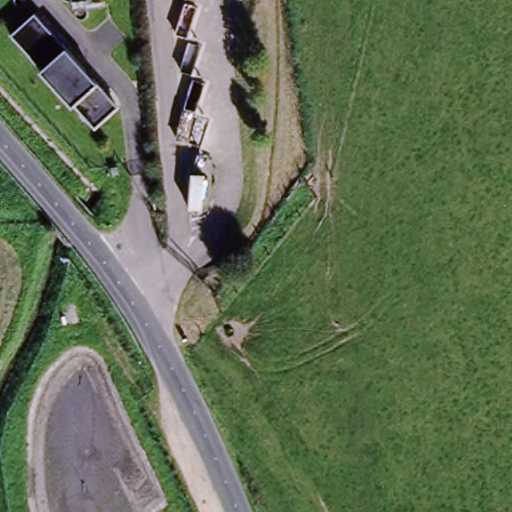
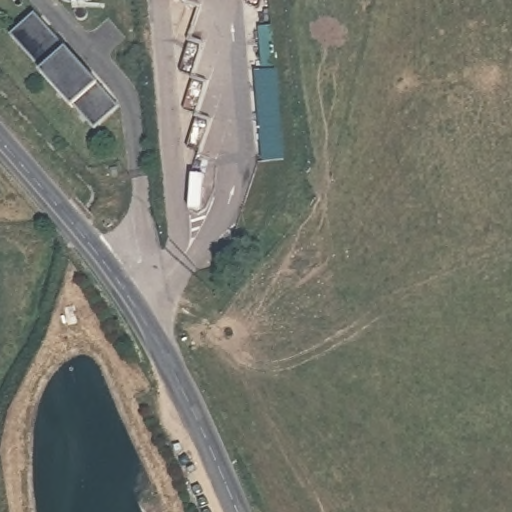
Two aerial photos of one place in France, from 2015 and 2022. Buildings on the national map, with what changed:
unchanged [(117,108),(93,128),(8,37),(33,13),(117,108)]
new [(273,70),(286,159),(266,161),(254,72),(273,70)]

